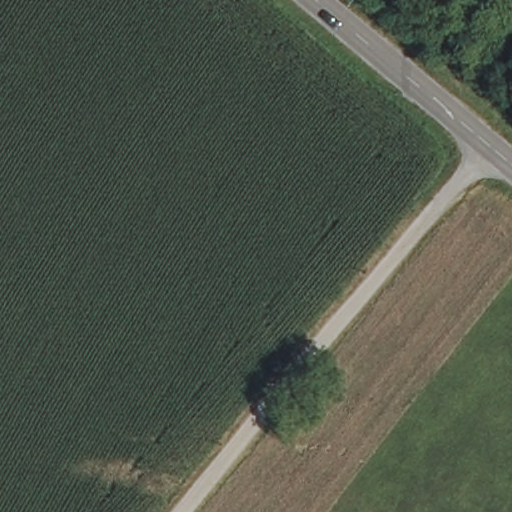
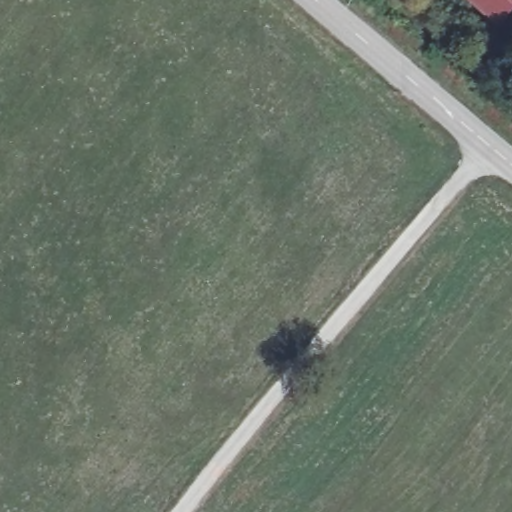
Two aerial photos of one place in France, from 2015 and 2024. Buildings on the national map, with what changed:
new [(498,29),(467,0),(512,0),(512,14),(498,29)]

